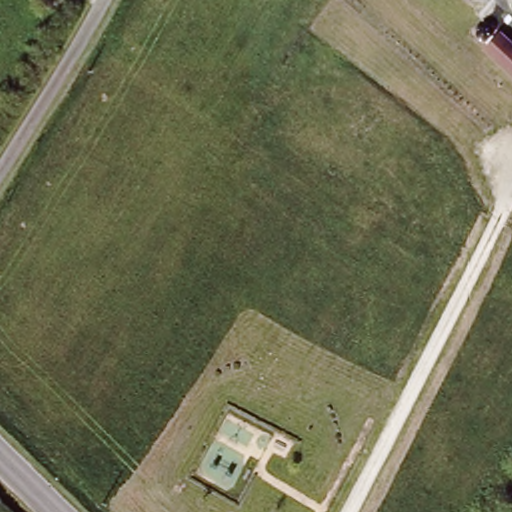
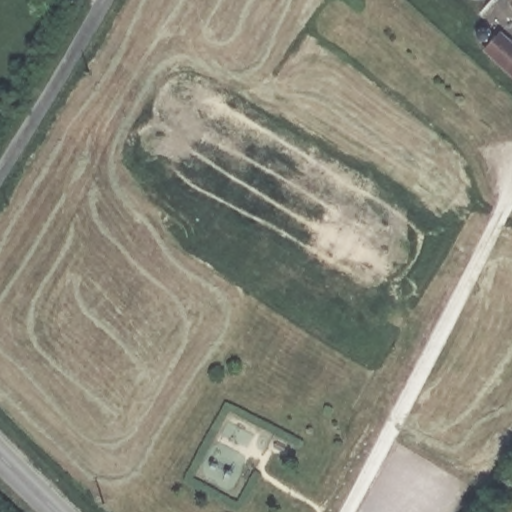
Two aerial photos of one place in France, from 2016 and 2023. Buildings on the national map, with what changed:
unchanged [(512,76),(484,49),(501,31),(512,41),(512,76)]

